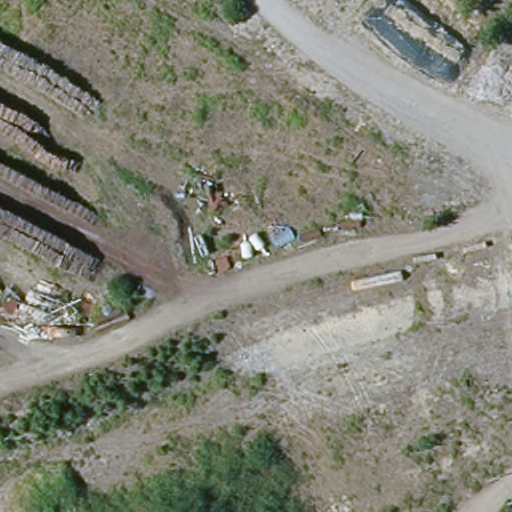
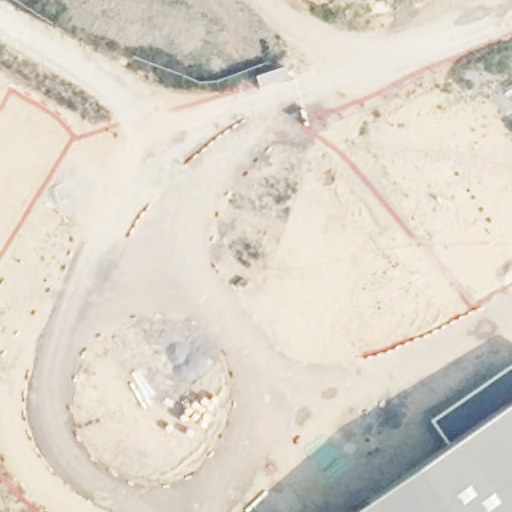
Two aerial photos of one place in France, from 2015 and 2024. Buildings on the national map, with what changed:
new [(446,445),(430,421),(512,363),(512,512),(350,512),(446,445)]

